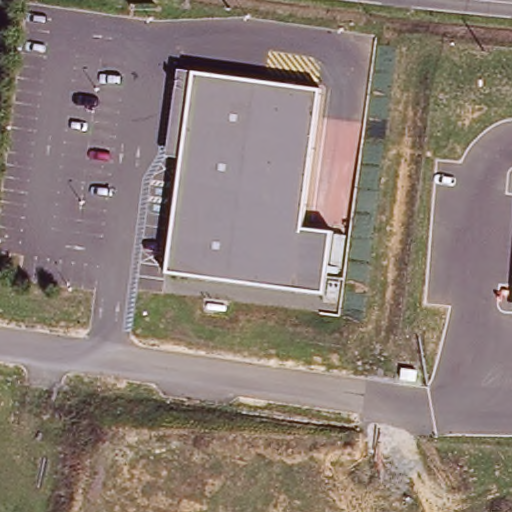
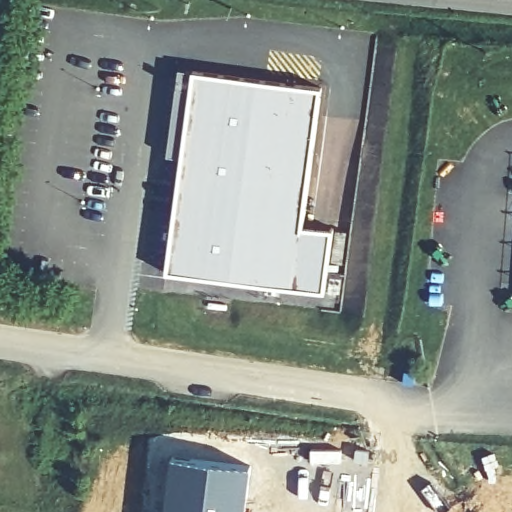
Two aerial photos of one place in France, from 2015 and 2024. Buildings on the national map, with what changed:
unchanged [(322,87),(302,225),(334,230),(325,289),(167,270),(182,157),(167,155),(179,67),(194,70),(322,87)]
new [(251,465),(245,512),(162,512),(170,454),(251,465)]

